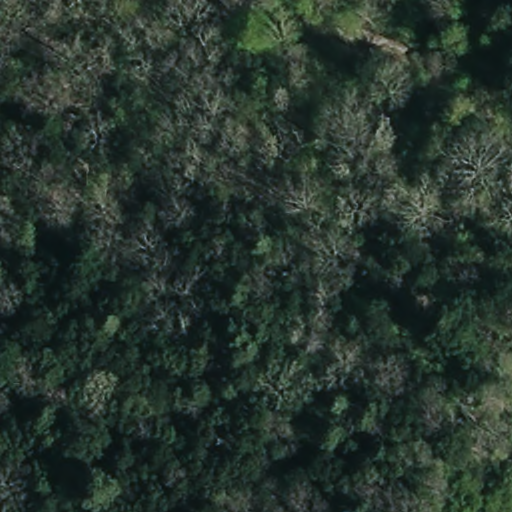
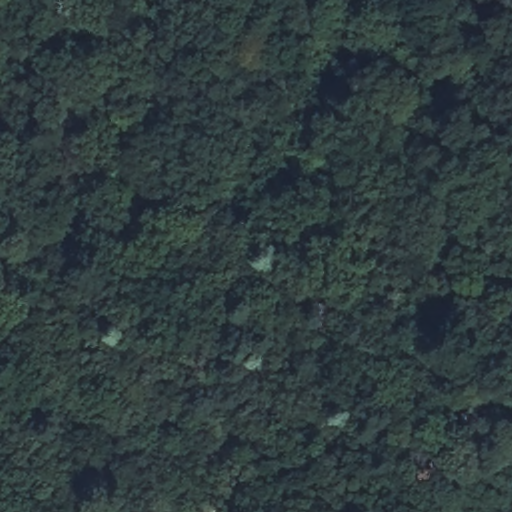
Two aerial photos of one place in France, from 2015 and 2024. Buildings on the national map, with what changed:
[]

